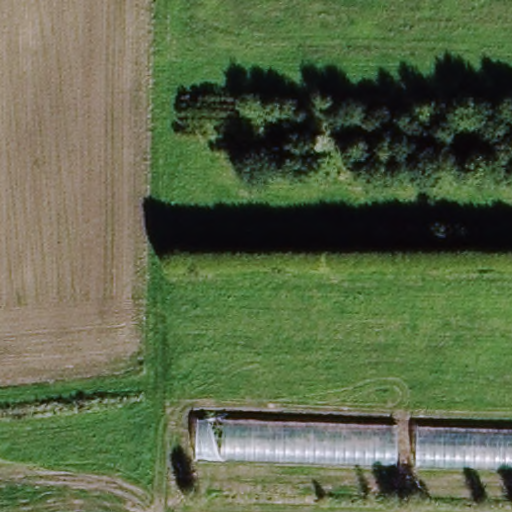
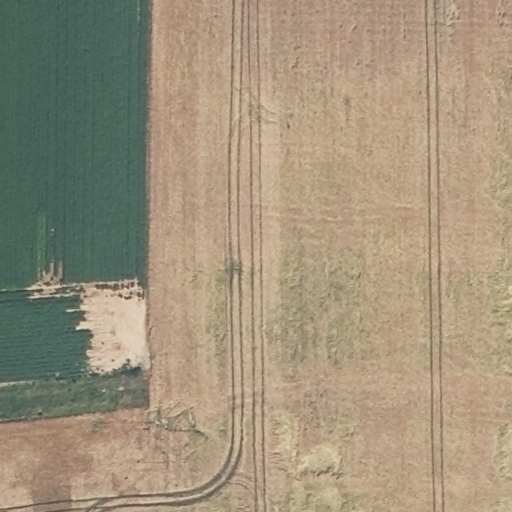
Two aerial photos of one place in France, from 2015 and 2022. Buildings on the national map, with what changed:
demolished [(397,466),(195,460),(196,420),(397,426),(397,466)]
demolished [(512,431),(512,471),(416,467),(416,427),(512,431)]

